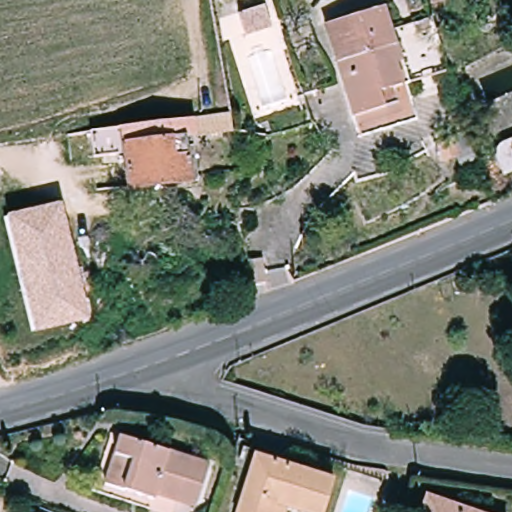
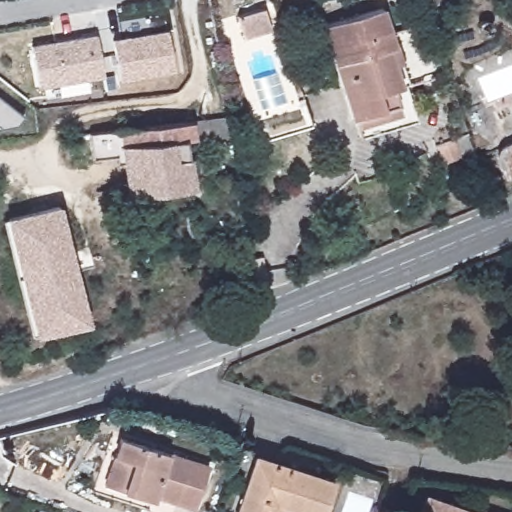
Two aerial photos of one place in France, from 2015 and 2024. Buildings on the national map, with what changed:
unchanged [(265,27),(238,36),(231,15),(257,5),(265,27)]
unchanged [(395,36),(400,51),(395,52),(408,91),(400,93),(405,108),(360,123),(330,31),(387,12),(395,36)]
unchanged [(425,29),(411,33),(408,24),(422,19),(425,29)]
new [(162,31),(170,71),(120,79),(113,40),(162,31)]
new [(97,34),(104,76),(39,88),(31,45),(97,34)]
new [(16,124),(0,126),(0,99),(23,117),(16,124)]
unchanged [(106,159),(83,162),(80,136),(115,131),(219,118),(222,135),(168,142),(173,184),(118,191),(115,166),(108,167),(106,159)]
unchanged [(508,143),(512,142),(512,155),(508,143)]
unchanged [(88,322),(33,334),(5,217),(60,205),(88,322)]
unchanged [(266,281),(253,282),(248,258),(265,257),(266,281)]
unchanged [(211,466),(200,507),(158,493),(156,500),(110,484),(125,438),(211,466)]
unchanged [(260,455),(339,486),(328,512),(239,512),(260,455)]
unchanged [(476,512),(426,512),(432,497),(476,512)]

